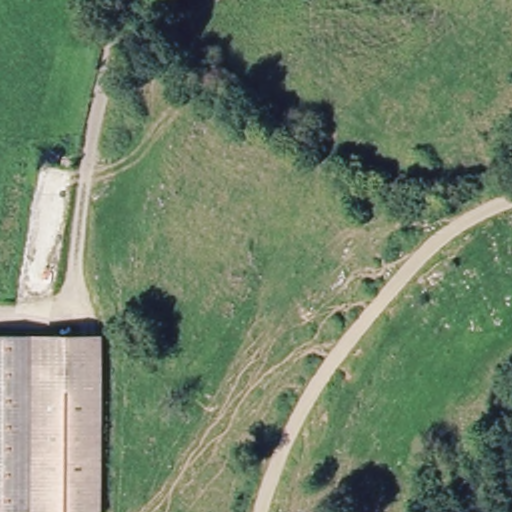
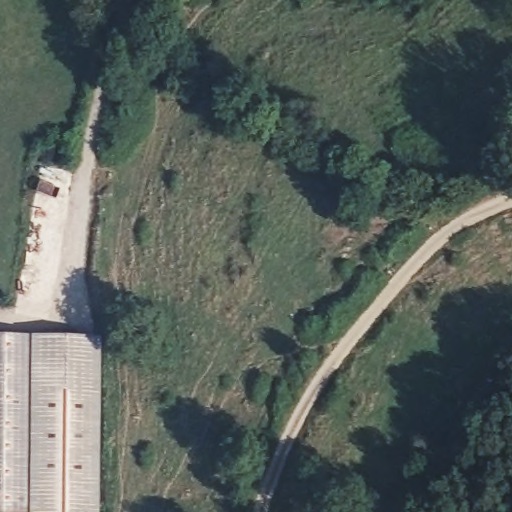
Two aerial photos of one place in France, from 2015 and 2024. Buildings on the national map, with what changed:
unchanged [(97,512),(8,512),(0,511),(0,333),(107,341),(97,512)]

